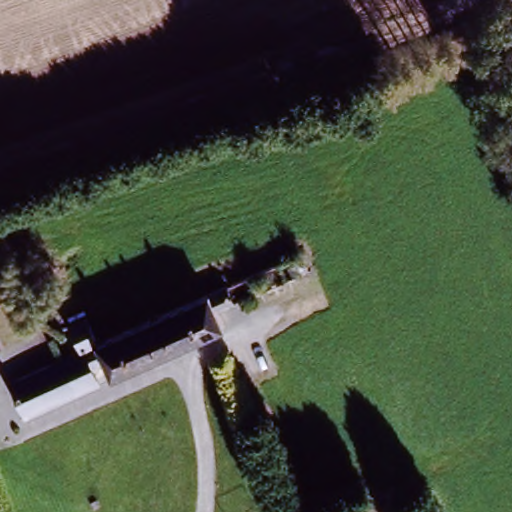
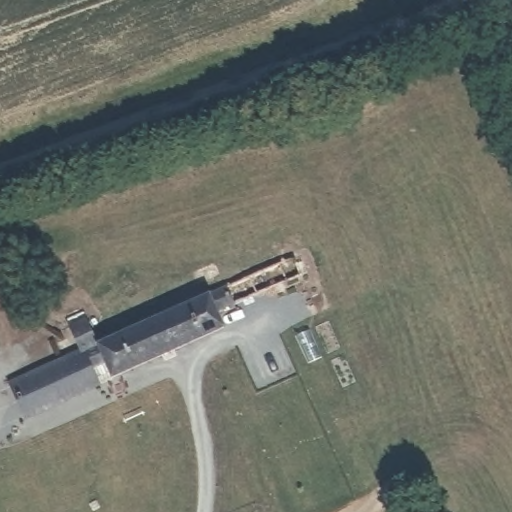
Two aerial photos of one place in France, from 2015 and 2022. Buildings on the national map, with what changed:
unchanged [(4,421),(0,409),(0,380),(64,354),(53,328),(68,322),(79,348),(296,257),(303,273),(215,309),(223,329),(102,379),(89,385),(4,421)]
unchanged [(253,414),(235,424),(211,363),(230,355),(253,414)]

